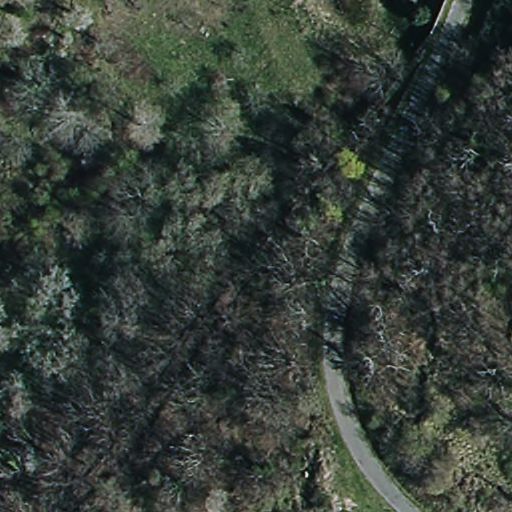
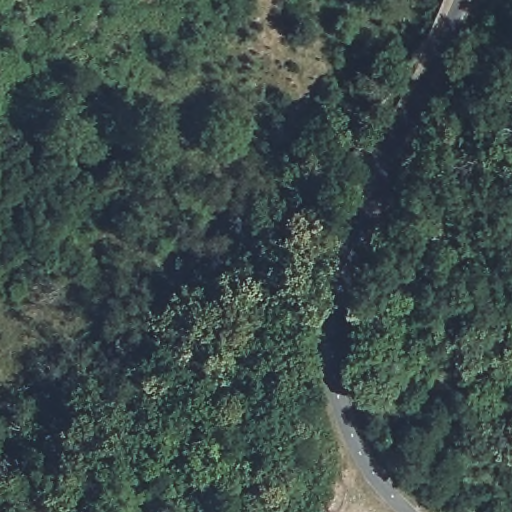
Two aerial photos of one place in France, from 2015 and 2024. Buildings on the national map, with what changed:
[]

